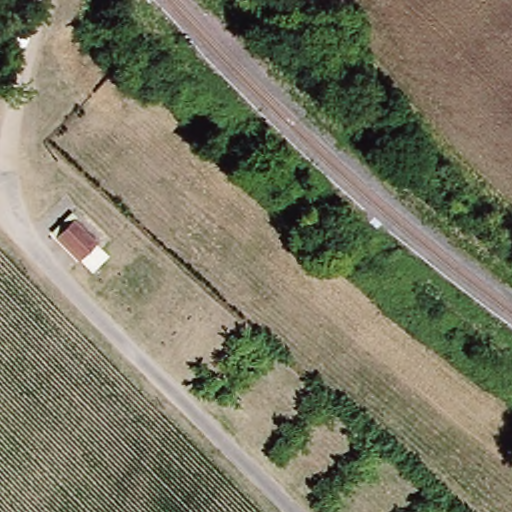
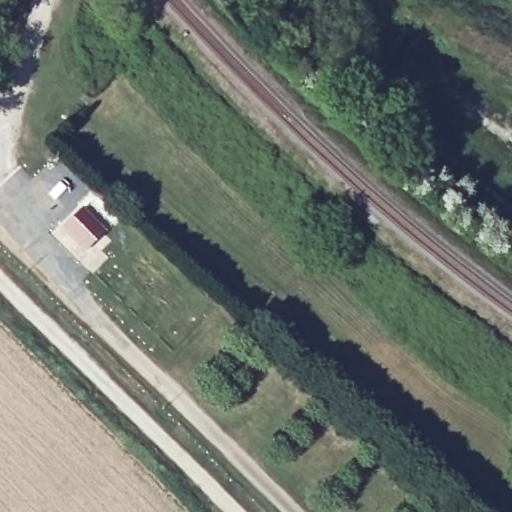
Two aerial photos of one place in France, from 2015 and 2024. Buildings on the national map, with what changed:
unchanged [(67,220),(92,242),(77,258),(53,237),(67,220)]

